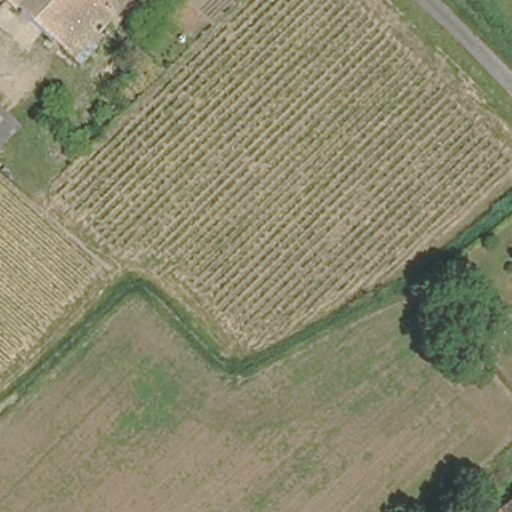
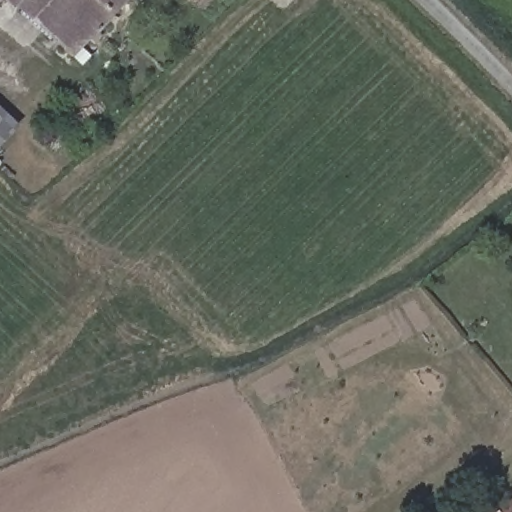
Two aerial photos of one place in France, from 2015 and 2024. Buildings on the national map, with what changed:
unchanged [(101,16),(105,24),(100,29),(91,34),(87,31),(69,48),(21,4),(14,9),(6,0),(117,0),(101,16)]
unchanged [(0,138),(0,118),(8,124),(0,138)]
unchanged [(498,512),(508,505),(512,502),(512,512),(498,512)]

